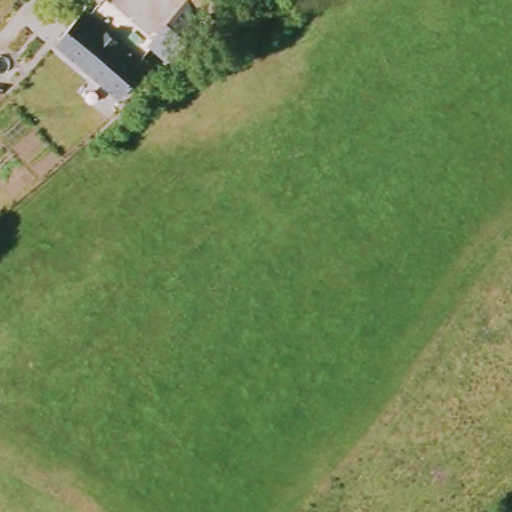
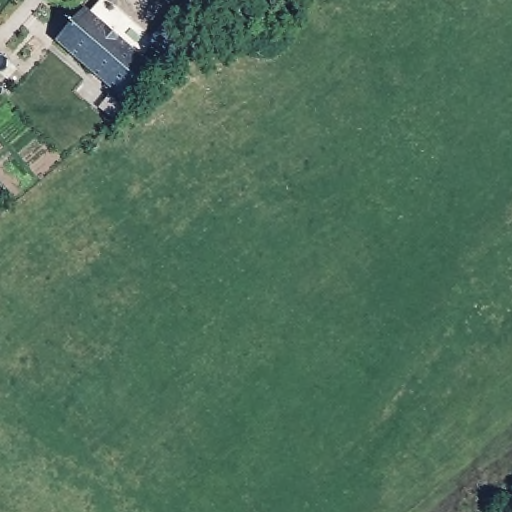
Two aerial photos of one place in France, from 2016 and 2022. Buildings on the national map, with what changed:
unchanged [(200,25),(168,58),(152,43),(187,0),(188,0),(200,25)]
unchanged [(147,63),(119,96),(53,40),(80,8),(147,63)]

